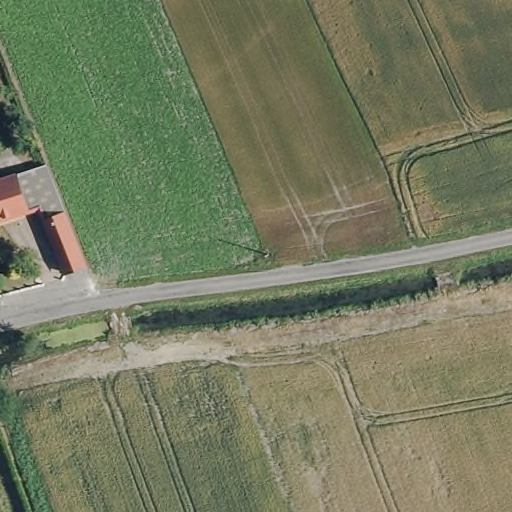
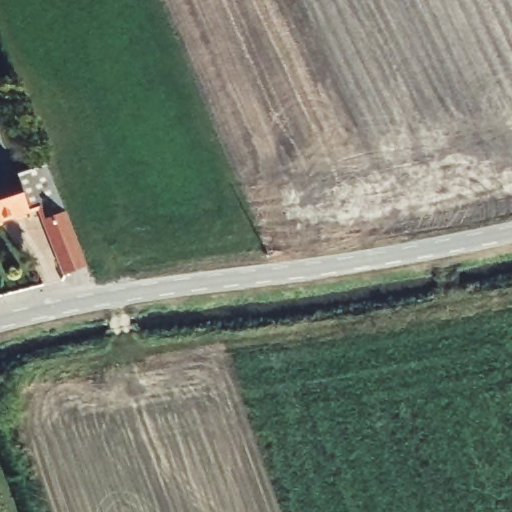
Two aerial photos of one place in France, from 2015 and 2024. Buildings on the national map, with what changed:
unchanged [(82,265),(81,265),(62,272),(41,221),(43,220),(38,206),(0,221),(0,182),(42,165),(82,265)]

